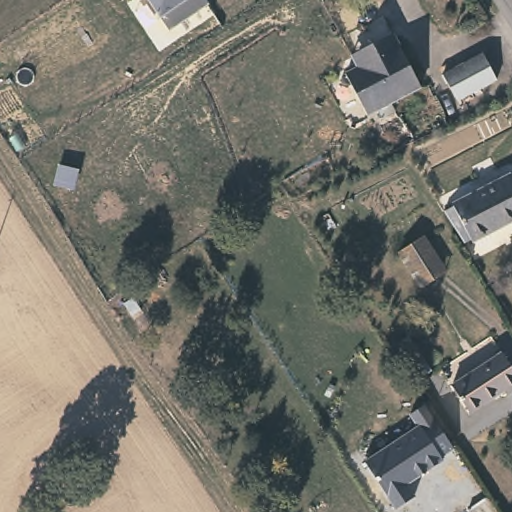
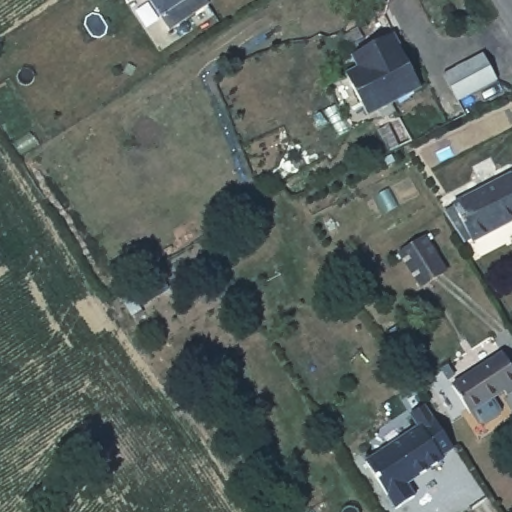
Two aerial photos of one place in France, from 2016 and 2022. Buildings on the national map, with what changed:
unchanged [(169,29),(149,0),(208,0),(210,2),(169,29)]
unchanged [(420,89),(364,119),(342,79),(355,71),(348,61),(357,56),(392,37),(420,89)]
unchanged [(504,80),(460,101),(445,73),(486,51),(504,80)]
unchanged [(512,222),(471,242),(469,238),(460,242),(443,215),(451,210),(451,205),(509,175),(512,176),(512,222)]
unchanged [(442,270),(420,282),(403,254),(425,240),(442,270)]
unchanged [(434,370),(416,380),(392,345),(411,333),(434,370)]
unchanged [(512,397),(510,399),(507,396),(472,418),(453,390),(505,355),(512,366),(512,397)]
unchanged [(417,425),(411,412),(425,401),(456,445),(444,454),(443,459),(408,481),(415,495),(395,508),(366,461),(417,425)]

